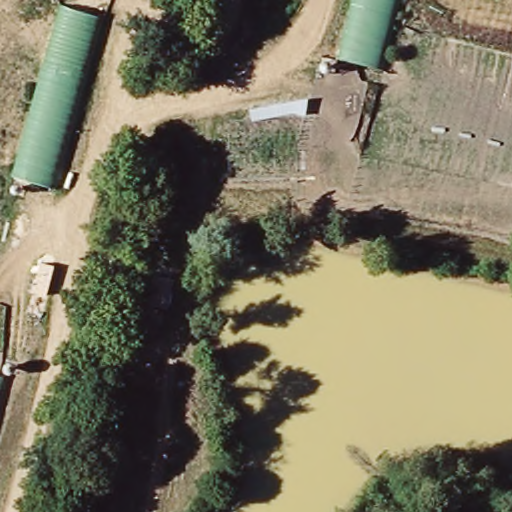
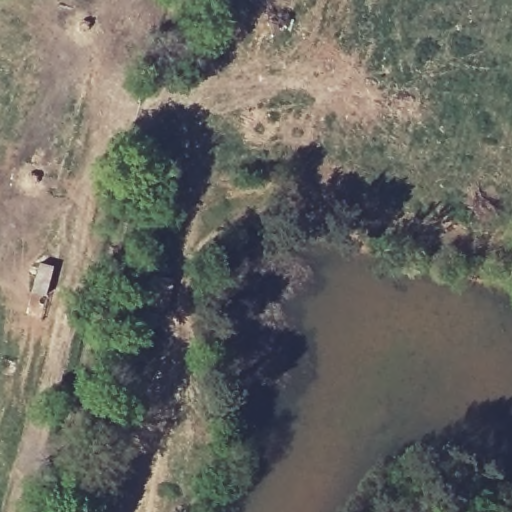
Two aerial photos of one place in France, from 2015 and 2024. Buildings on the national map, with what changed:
demolished [(382,68),(337,56),(351,0),(399,0),(382,68)]
demolished [(44,62),(61,1),(104,12),(86,75),(44,62)]
demolished [(44,62),(86,75),(52,193),(7,177),(44,62)]
demolished [(5,380),(0,398),(0,379),(5,380)]
unchanged [(138,394),(119,457),(100,451),(123,388),(138,394)]

